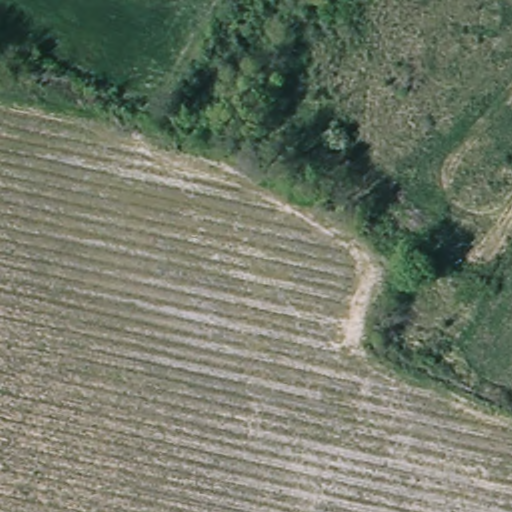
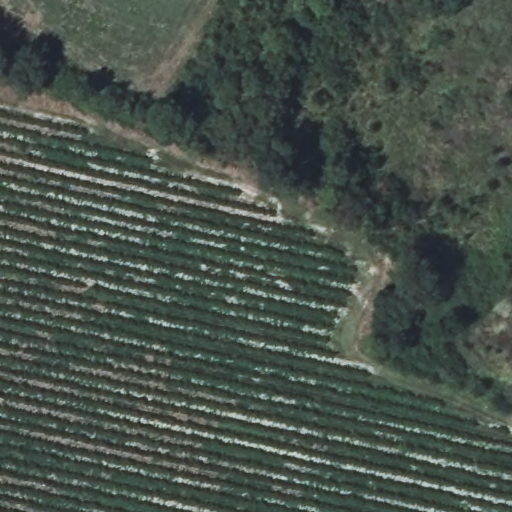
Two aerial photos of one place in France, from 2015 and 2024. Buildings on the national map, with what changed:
[]

